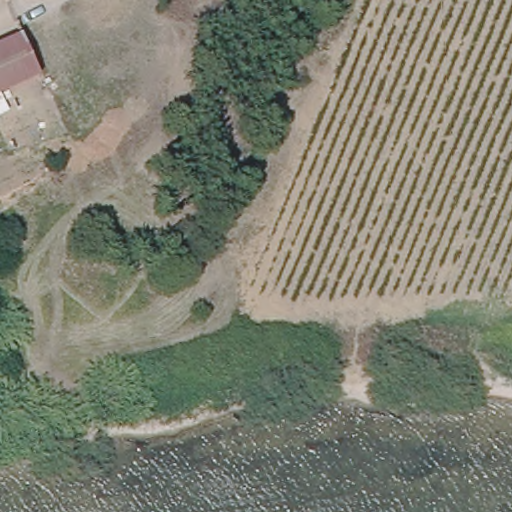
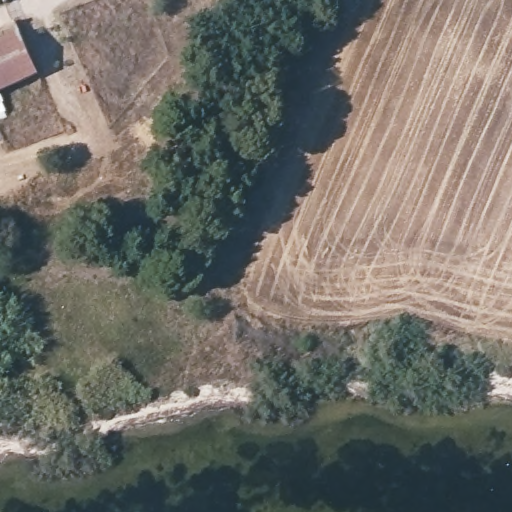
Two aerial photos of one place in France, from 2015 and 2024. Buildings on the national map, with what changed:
unchanged [(0,35),(18,27),(34,72),(0,87),(0,35)]

